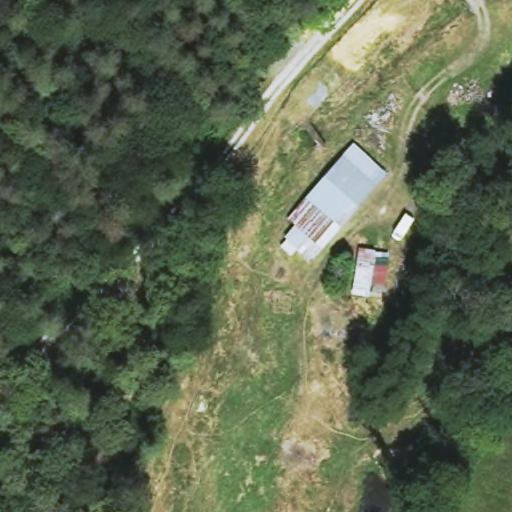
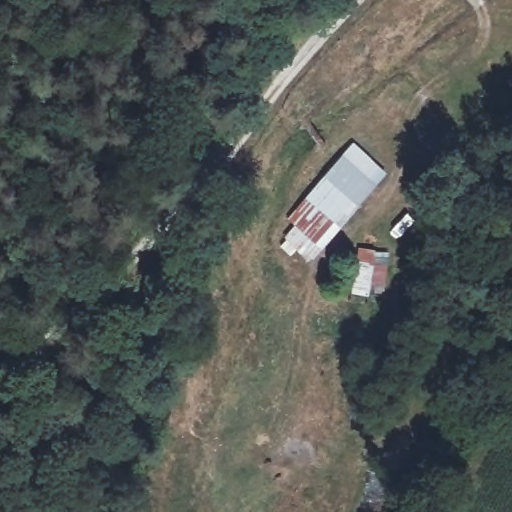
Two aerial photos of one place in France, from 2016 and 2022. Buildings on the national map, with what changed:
unchanged [(285,242),(298,223),(288,216),(350,142),(388,173),(314,265),(285,242)]

